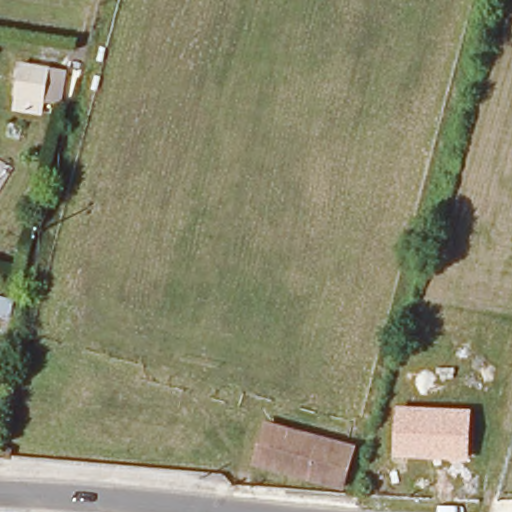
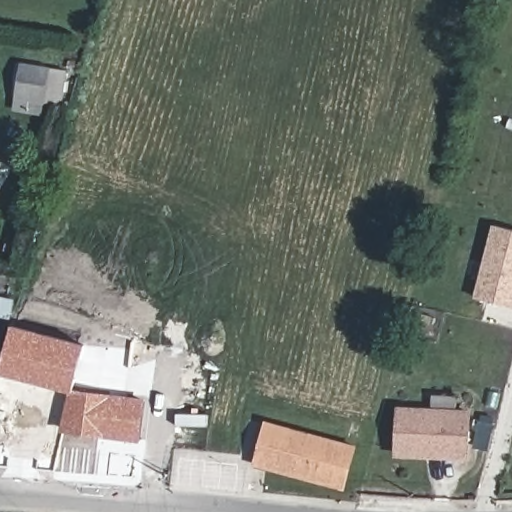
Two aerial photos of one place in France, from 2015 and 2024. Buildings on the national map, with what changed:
unchanged [(41,112),(16,108),(21,73),(46,77),(41,112)]
new [(512,230),(512,308),(476,298),(495,226),(512,230)]
new [(69,392),(0,373),(0,369),(11,325),(86,343),(73,389),(147,398),(141,443),(61,431),(69,392)]
demolished [(49,371),(49,375),(32,446),(0,440),(0,429),(15,365),(49,371)]
unchanged [(468,460),(395,457),(397,407),(471,410),(468,460)]
unchanged [(257,466),(263,440),(267,424),(281,427),(301,432),(330,440),(353,445),(341,486),(257,466)]

